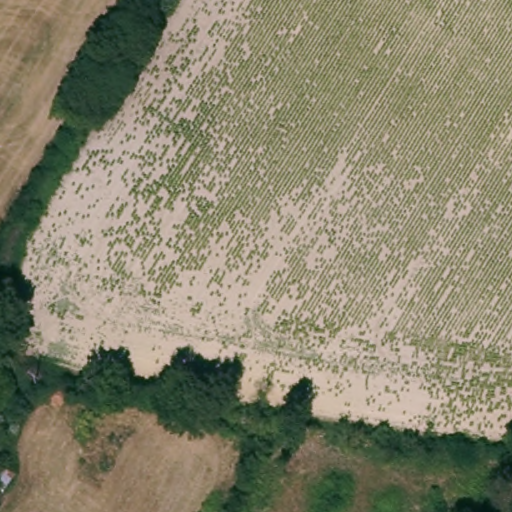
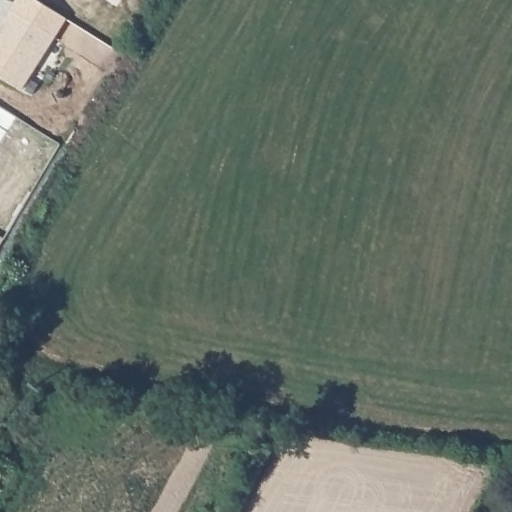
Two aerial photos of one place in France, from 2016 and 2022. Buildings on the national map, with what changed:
new [(22,91),(0,78),(0,36),(6,24),(2,22),(11,7),(55,35),(22,91)]
unchanged [(0,501),(0,465),(17,478),(0,501)]

